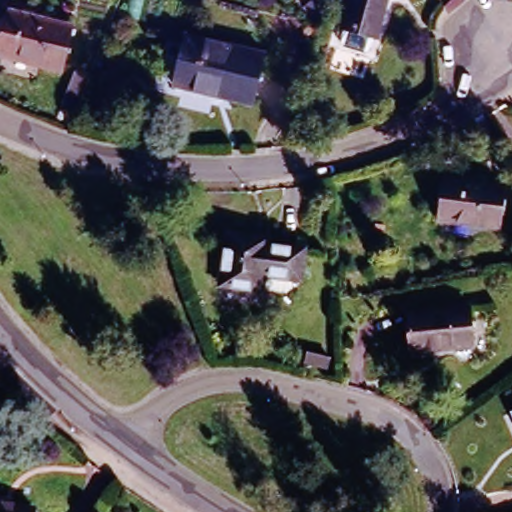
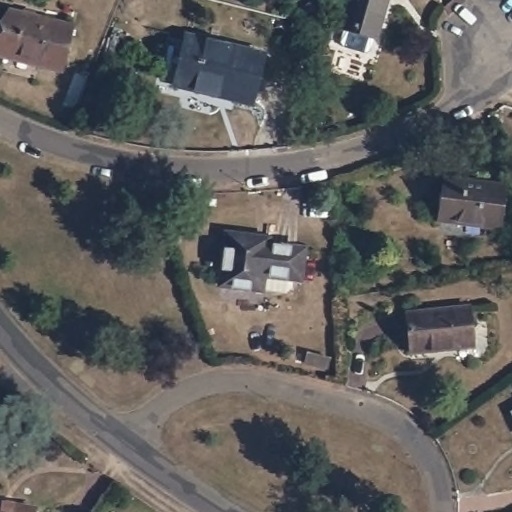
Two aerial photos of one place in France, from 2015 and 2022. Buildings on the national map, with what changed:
unchanged [(365,28),(360,48),(330,40),(342,0),(377,0),(368,29),(365,28)]
unchanged [(60,22),(51,64),(0,52),(0,8),(60,22)]
unchanged [(261,60),(249,110),(170,90),(181,40),(261,60)]
unchanged [(48,93),(58,69),(75,75),(65,100),(48,93)]
unchanged [(499,187),(493,226),(437,217),(442,179),(499,187)]
unchanged [(264,232),(263,239),(294,243),(290,272),(283,271),(282,281),(275,286),(215,277),(222,227),(252,231),(264,232)]
unchanged [(470,309),(473,350),(409,356),(406,316),(470,309)]
unchanged [(35,510),(34,512),(0,512),(0,503),(35,510)]

